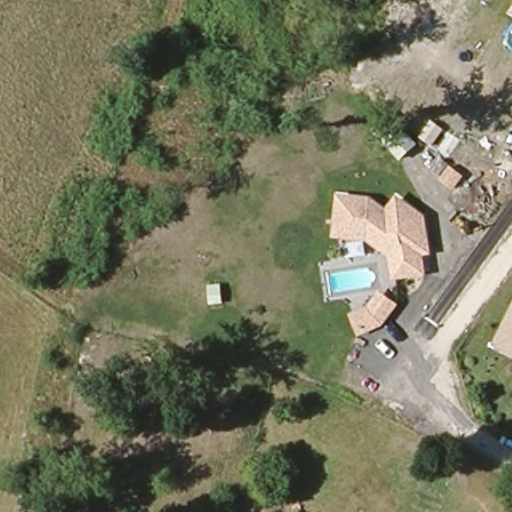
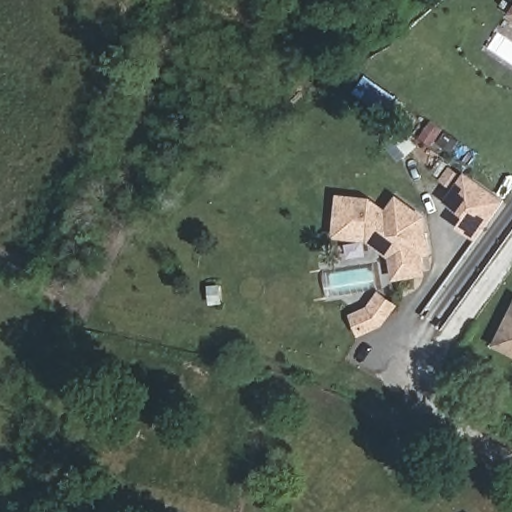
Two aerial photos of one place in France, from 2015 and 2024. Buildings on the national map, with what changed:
unchanged [(512,8),(512,18),(507,14),(512,8)]
new [(477,240),(457,227),(465,215),(446,203),(468,172),(505,199),(477,240)]
unchanged [(370,196),(386,207),(396,195),(426,215),(432,253),(425,254),(427,275),(392,280),(388,257),(368,241),(334,239),(336,195),(370,196)]
unchanged [(349,312),(367,306),(378,290),(400,304),(385,327),(357,336),(349,312)]
unchanged [(512,303),(512,356),(490,346),(512,303)]

